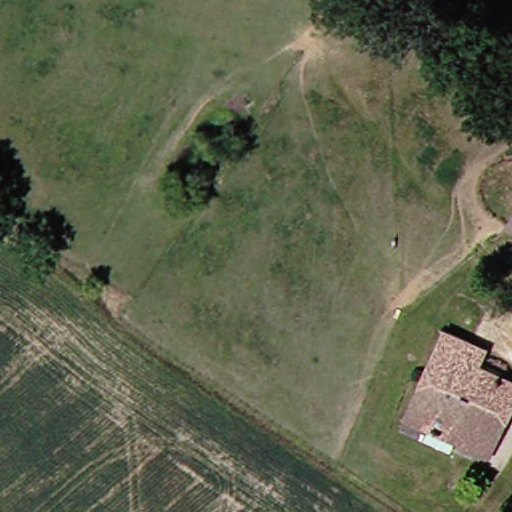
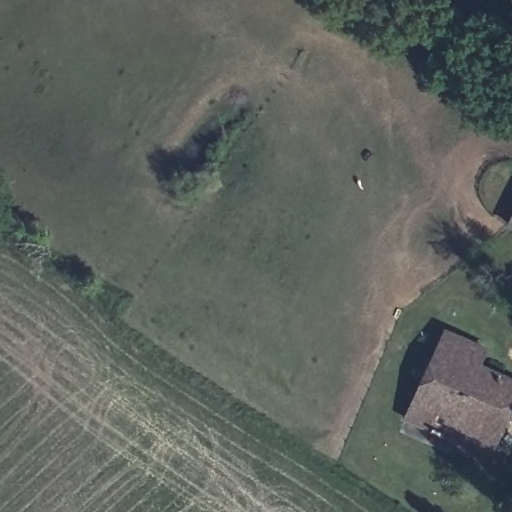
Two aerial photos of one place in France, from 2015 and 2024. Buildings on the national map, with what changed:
unchanged [(512,217),(512,219),(511,218),(512,217)]
unchanged [(412,416),(452,329),(473,339),(491,348),(485,361),(509,374),(476,446),(412,416)]
unchanged [(512,412),(493,454),(476,446),(509,374),(512,375),(512,412)]

